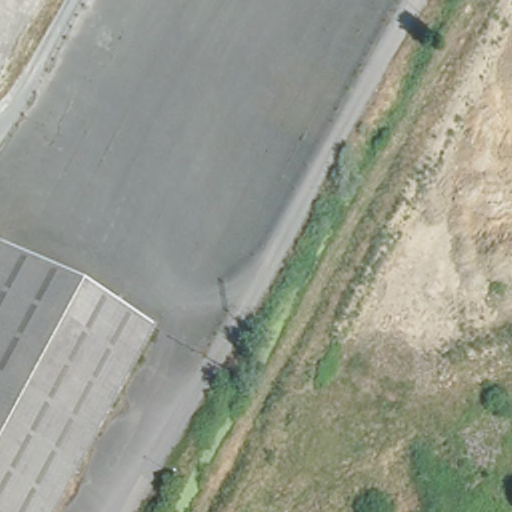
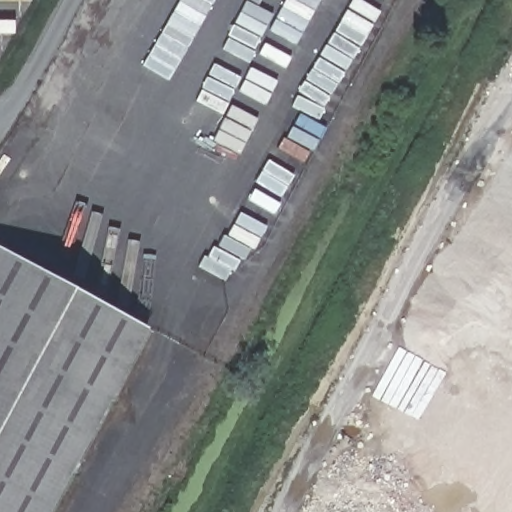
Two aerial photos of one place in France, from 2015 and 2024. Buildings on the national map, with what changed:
unchanged [(48,512),(0,512),(0,249),(149,326),(48,512)]

